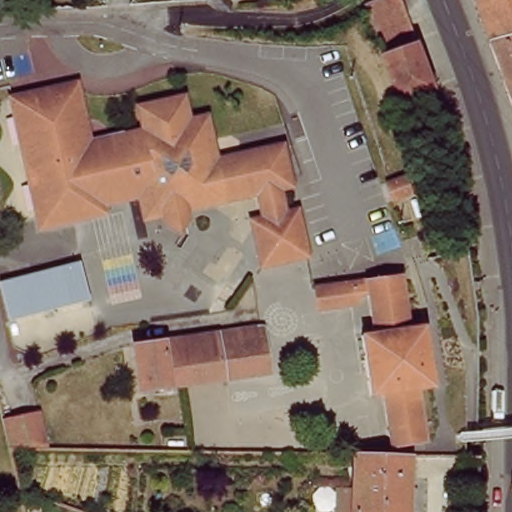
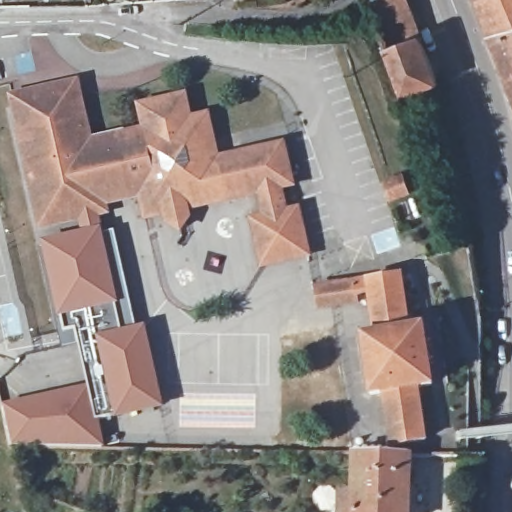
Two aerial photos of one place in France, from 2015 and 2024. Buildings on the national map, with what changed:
new [(398,49),(380,0),(399,0),(415,42),(432,86),(415,93),(398,99),(381,54),(398,49)]
unchanged [(490,24),(481,0),(512,0),(512,15),(490,24)]
unchanged [(496,41),(490,24),(512,15),(512,36),(496,41)]
unchanged [(505,69),(496,41),(512,36),(512,87),(505,69)]
demolished [(415,93),(398,49),(415,42),(432,86),(415,93)]
unchanged [(15,106),(13,97),(72,84),(78,87),(83,109),(90,140),(119,134),(122,145),(132,192),(133,195),(42,218),(15,106)]
unchanged [(275,143),(287,147),(295,182),(283,184),(288,209),(299,207),(305,217),(308,230),(309,252),(265,263),(255,216),(266,214),(260,190),(189,207),(190,215),(182,227),(170,219),(168,210),(148,215),(143,192),(133,195),(132,192),(122,145),(119,134),(145,128),(140,104),(186,94),(190,118),(209,113),(214,135),(210,144),(212,159),(220,164),(239,159),(243,150),(275,143)]
unchanged [(407,175),(412,193),(397,198),(391,180),(407,175)]
new [(77,329),(67,332),(47,243),(87,234),(82,208),(96,204),(122,319),(125,333),(114,335),(145,329),(163,405),(98,419),(105,447),(15,446),(6,408),(65,394),(90,389),(93,398),(77,329)]
new [(43,227),(41,218),(82,208),(84,218),(43,227)]
demolished [(2,282),(84,260),(92,299),(12,320),(2,282)]
unchanged [(405,277),(412,328),(426,325),(435,386),(421,388),(428,439),(394,444),(386,393),(373,394),(365,334),(377,334),(372,291),(360,293),(357,295),(360,302),(335,305),(322,307),(320,294),(319,286),(332,284),(353,281),(354,284),(369,279),(370,282),(405,277)]
demolished [(266,325),(272,371),(229,377),(176,384),(170,340),(266,325)]
demolished [(143,389),(135,344),(147,343),(170,340),(176,384),(143,389)]
demolished [(14,446),(7,418),(40,411),(49,447),(14,446)]
unchanged [(293,451),(299,452),(299,459),(293,459),(293,451)]
unchanged [(357,456),(415,457),(414,512),(355,512),(357,456)]

